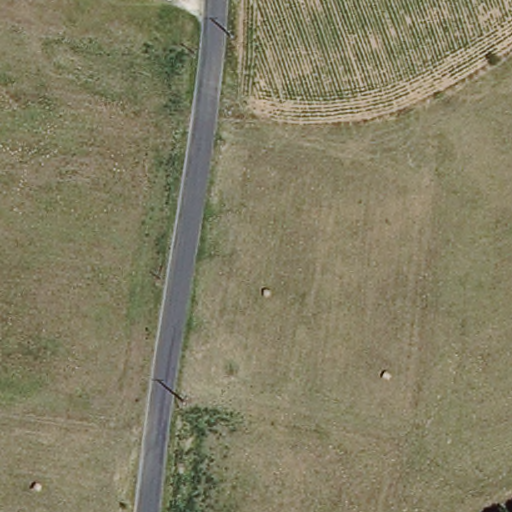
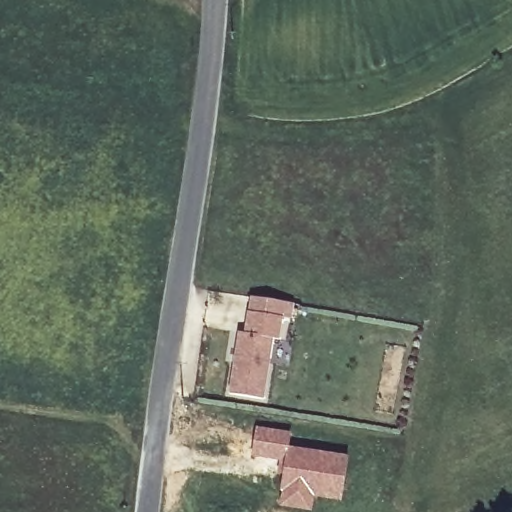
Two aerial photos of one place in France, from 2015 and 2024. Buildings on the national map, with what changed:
new [(280,341),(275,340),(265,399),(230,393),(239,332),(245,333),(248,312),(283,317),(280,341)]
new [(255,425),(291,431),(289,445),(283,461),(250,457),(255,425)]
new [(289,445),(350,455),(342,503),(316,499),(313,512),(307,512),(277,506),(283,461),(289,445)]

